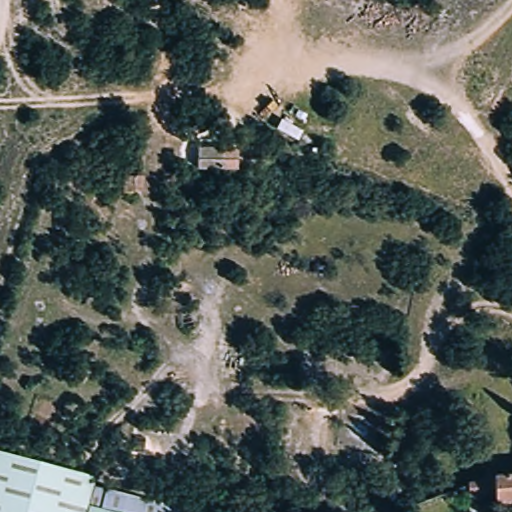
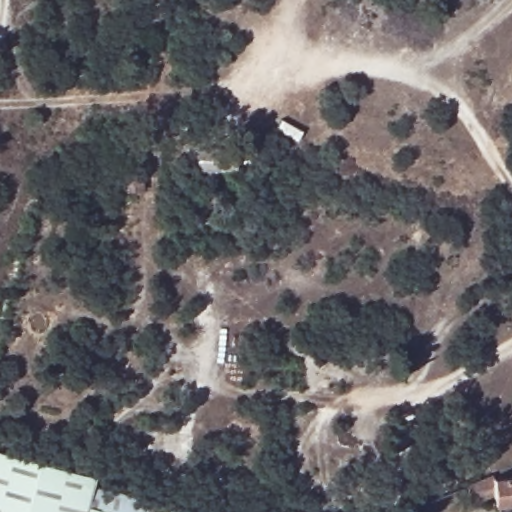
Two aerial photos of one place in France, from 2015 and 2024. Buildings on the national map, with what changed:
unchanged [(142,172),(142,192),(120,191),(121,171),(142,172)]
unchanged [(0,512),(0,451),(100,478),(184,500),(181,512),(0,512)]
unchanged [(472,495),(472,478),(499,469),(512,468),(512,495),(498,496),(472,495)]

